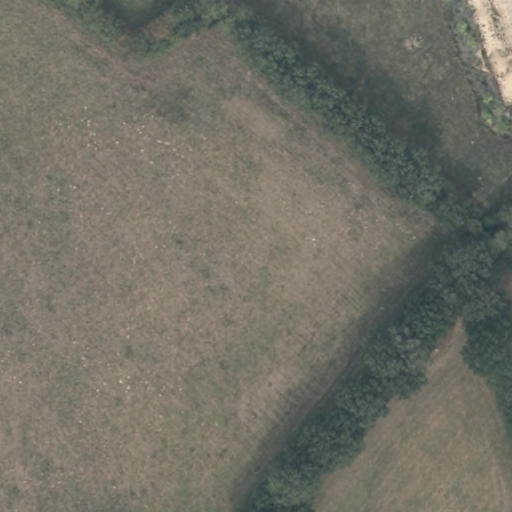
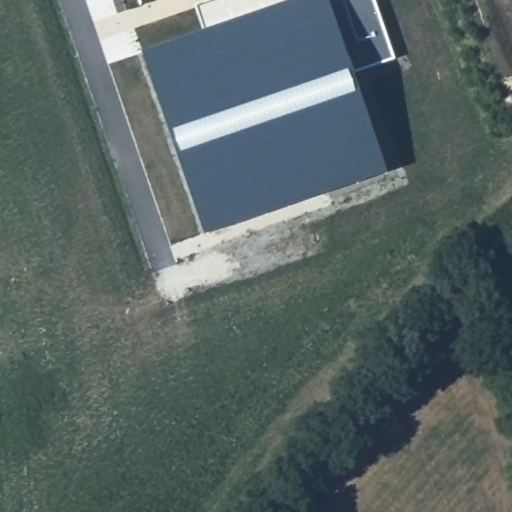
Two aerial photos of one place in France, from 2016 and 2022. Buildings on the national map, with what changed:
new [(204,232),(141,50),(204,30),(195,4),(209,0),(372,0),(393,58),(354,70),(388,171),(204,232)]

